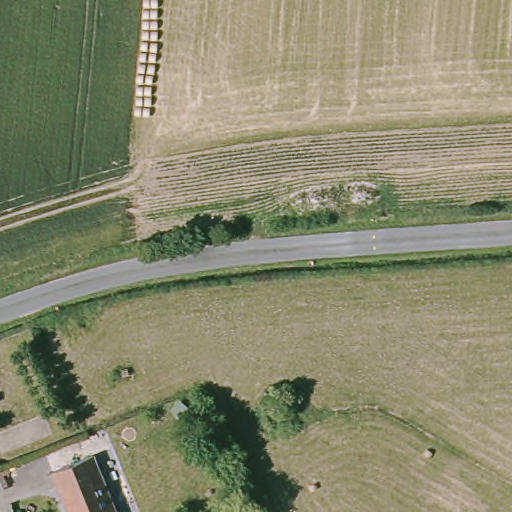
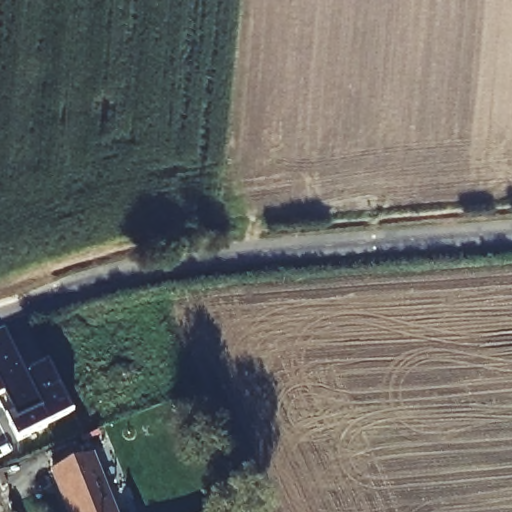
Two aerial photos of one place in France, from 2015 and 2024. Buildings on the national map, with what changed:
new [(47,425),(18,440),(0,405),(0,334),(3,333),(24,374),(48,361),(71,406),(74,411),(47,425)]
unchanged [(93,455),(115,512),(69,512),(53,471),(93,455)]

